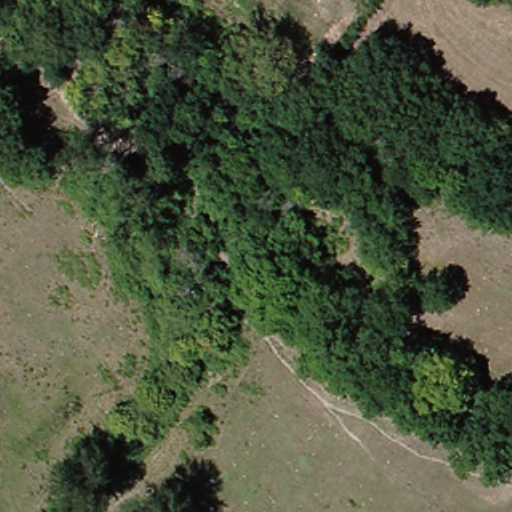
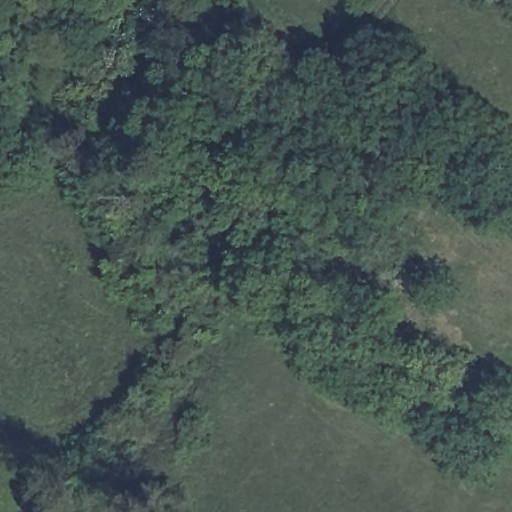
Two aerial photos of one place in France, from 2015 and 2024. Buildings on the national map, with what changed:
[]

